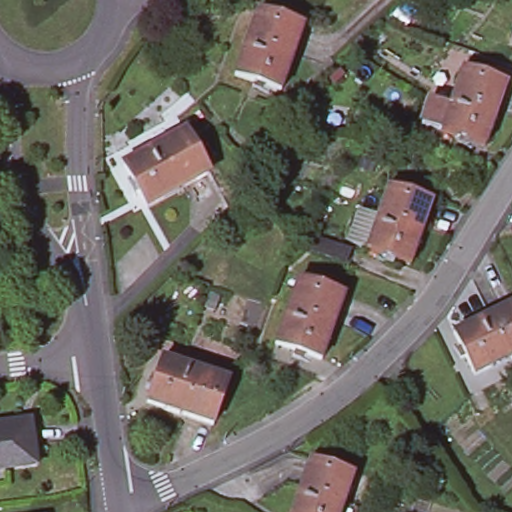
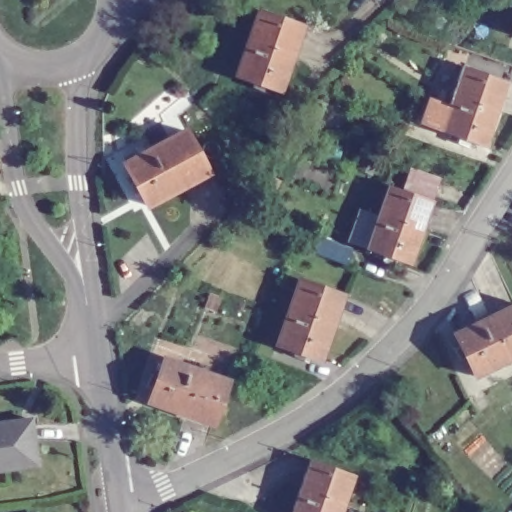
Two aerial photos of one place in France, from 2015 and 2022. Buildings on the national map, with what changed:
unchanged [(235,74),(258,10),(303,25),(280,90),(235,74)]
unchanged [(512,28),(512,33),(511,32),(512,28)]
unchanged [(438,128),(422,122),(429,98),(449,103),(464,64),(509,81),(484,146),(439,127),(438,128)]
unchanged [(208,172),(148,205),(124,163),(184,130),(208,172)]
unchanged [(365,249),(388,184),(433,200),(410,264),(365,249)]
unchanged [(48,273),(55,272),(57,282),(49,283),(48,273)]
unchanged [(276,343),(299,278),(343,294),(321,359),(276,343)]
unchanged [(512,356),(472,375),(452,333),(512,303),(512,356)]
unchanged [(163,356),(228,379),(212,424),(148,401),(163,356)]
unchanged [(0,469),(0,427),(31,423),(36,464),(0,469)]
unchanged [(354,474),(341,512),(290,512),(309,458),(354,474)]

